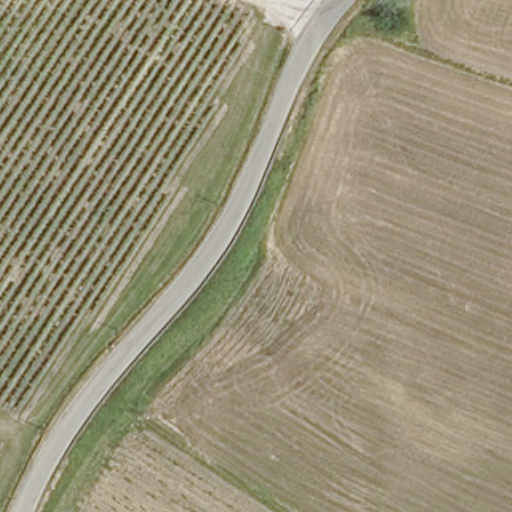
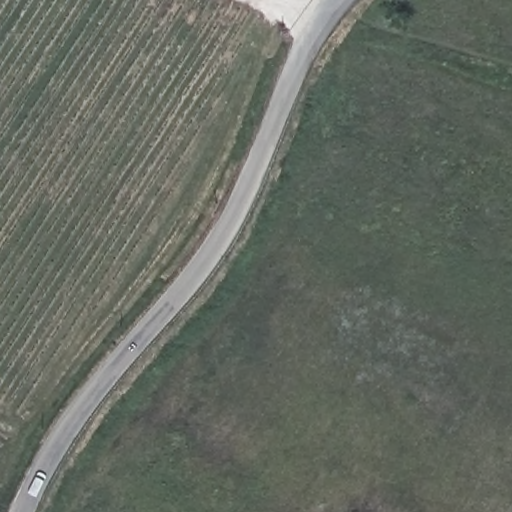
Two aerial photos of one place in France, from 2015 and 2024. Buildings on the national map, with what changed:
[]

